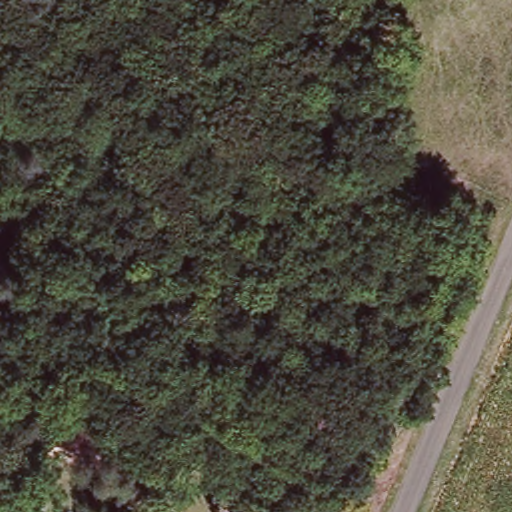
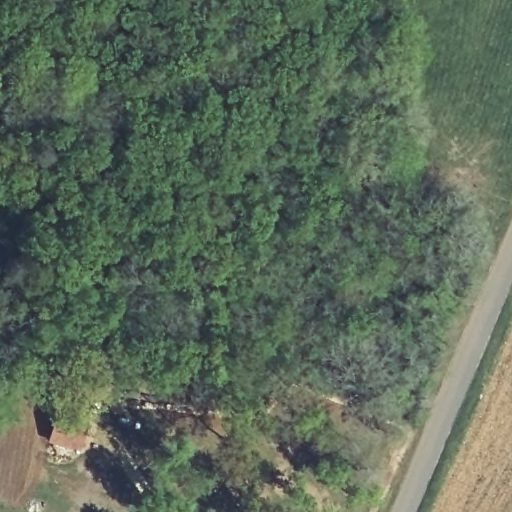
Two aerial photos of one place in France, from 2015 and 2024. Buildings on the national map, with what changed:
unchanged [(44,407),(77,412),(73,438),(40,433),(44,407)]

